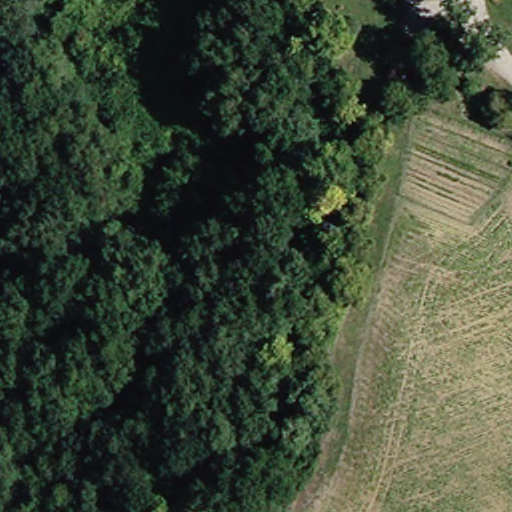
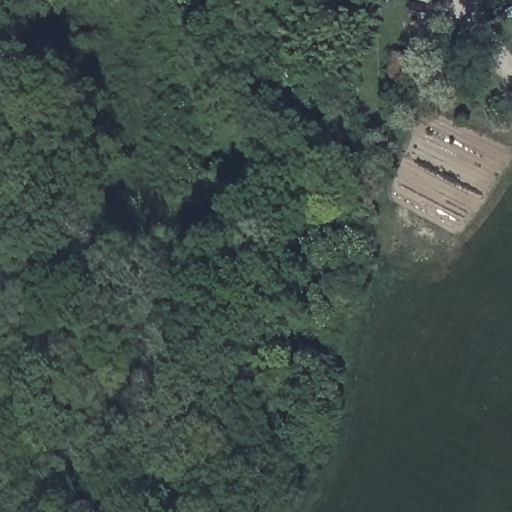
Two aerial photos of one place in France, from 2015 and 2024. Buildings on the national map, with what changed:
unchanged [(393,75),(400,49),(421,54),(415,80),(393,75)]

